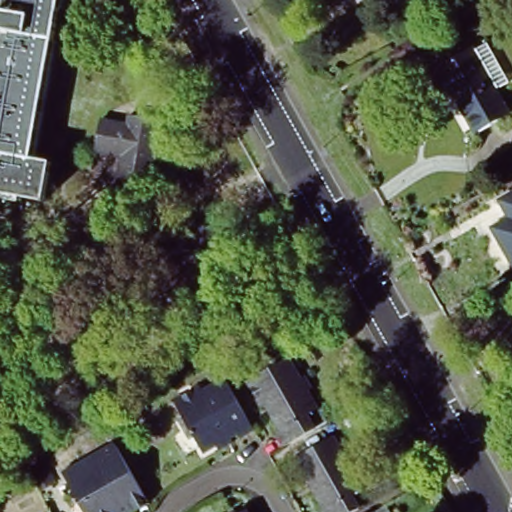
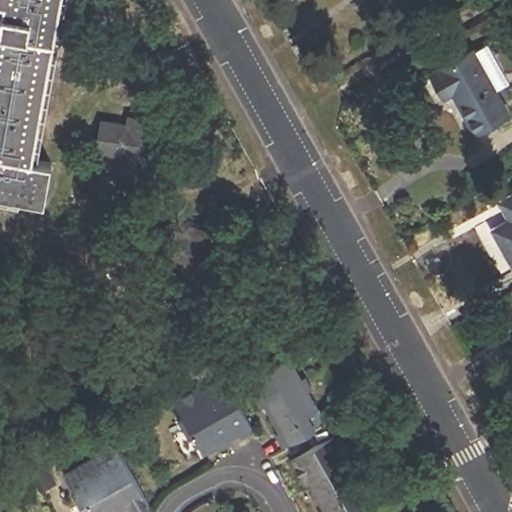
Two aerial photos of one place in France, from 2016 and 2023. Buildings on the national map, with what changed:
unchanged [(50,161),(43,199),(0,192),(0,0),(57,0),(30,157),(50,161)]
unchanged [(505,77),(490,84),(505,114),(473,133),(451,92),(441,97),(427,73),(487,41),(505,77)]
unchanged [(120,184),(125,154),(100,149),(104,119),(130,123),(131,113),(161,118),(150,189),(120,184)]
unchanged [(512,201),(512,221),(503,205),(512,201)]
unchanged [(512,222),(512,258),(497,230),(512,222)]
unchanged [(208,314),(180,309),(186,264),(160,260),(164,232),(190,236),(192,226),(221,232),(208,314)]
unchanged [(111,268),(96,249),(115,234),(130,252),(111,268)]
unchanged [(278,452),(268,434),(271,432),(257,408),(255,410),(239,384),(281,360),(310,410),(316,407),(327,425),(278,452)]
unchanged [(237,437),(236,434),(226,440),(228,443),(218,448),(216,446),(200,454),(188,430),(183,433),(178,423),(182,421),(172,403),(199,390),(201,394),(227,381),(252,430),(237,437)]
unchanged [(352,512),(315,512),(317,510),(302,485),(300,487),(285,463),(328,439),(357,488),(362,485),(371,501),(352,512)]
unchanged [(153,502),(138,511),(136,507),(127,512),(90,512),(84,501),(79,504),(72,493),(76,491),(65,473),(88,459),(92,465),(120,448),(153,502)]
unchanged [(384,512),(383,512),(383,511),(384,512)]

